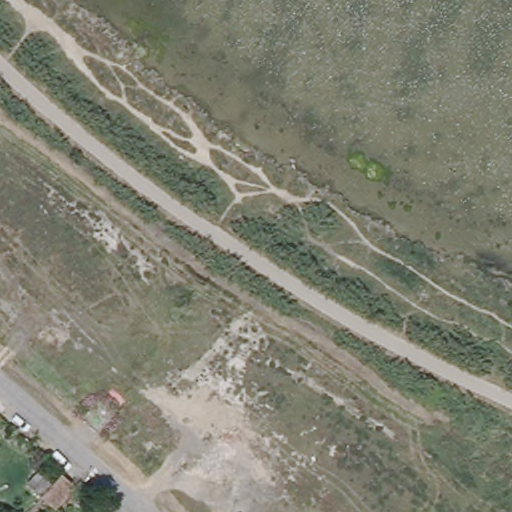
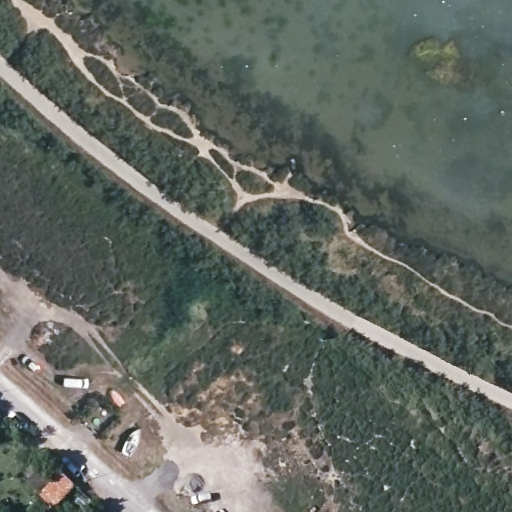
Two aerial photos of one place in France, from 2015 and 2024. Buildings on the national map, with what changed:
unchanged [(50,504),(43,512),(27,512),(62,473),(76,486),(55,509),(50,504)]

